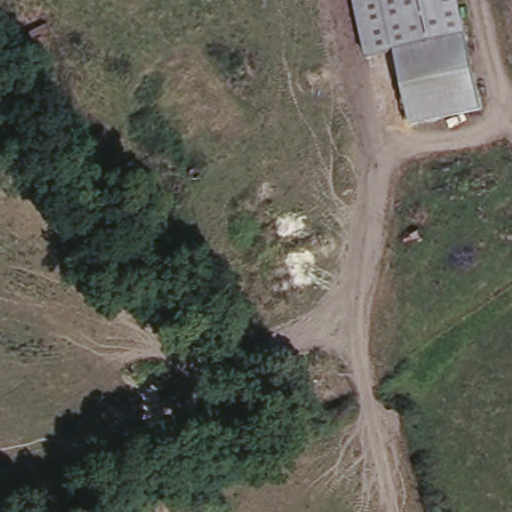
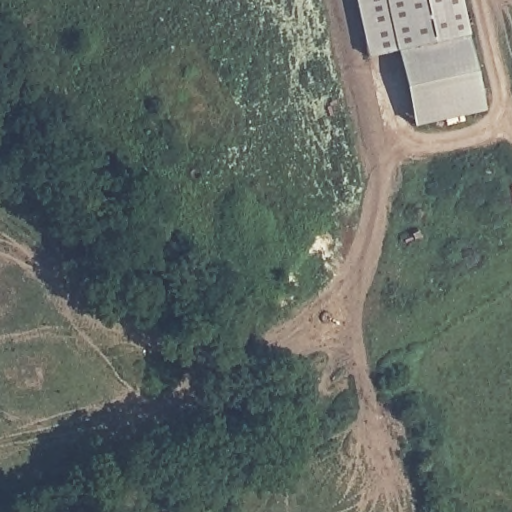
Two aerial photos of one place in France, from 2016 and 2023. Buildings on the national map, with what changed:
unchanged [(414,125),(396,51),(369,56),(356,0),(461,0),(485,110),(414,125)]

